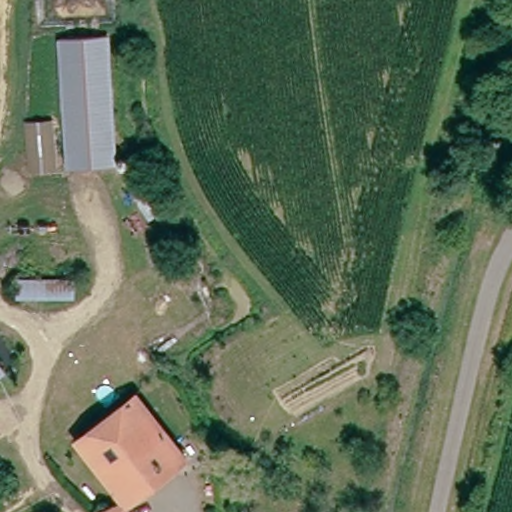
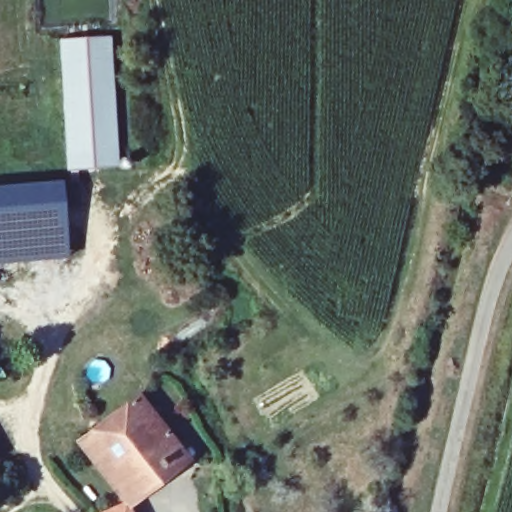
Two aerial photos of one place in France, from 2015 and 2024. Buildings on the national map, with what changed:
unchanged [(63,148),(62,38),(111,38),(113,166),(91,166),(63,167),(63,148)]
new [(0,264),(0,185),(60,180),(67,259),(0,264)]
unchanged [(134,389),(139,397),(186,464),(126,506),(80,441),(117,415),(114,411),(109,405),(121,398),(134,389)]
unchanged [(130,512),(115,512),(126,506),(130,512)]

